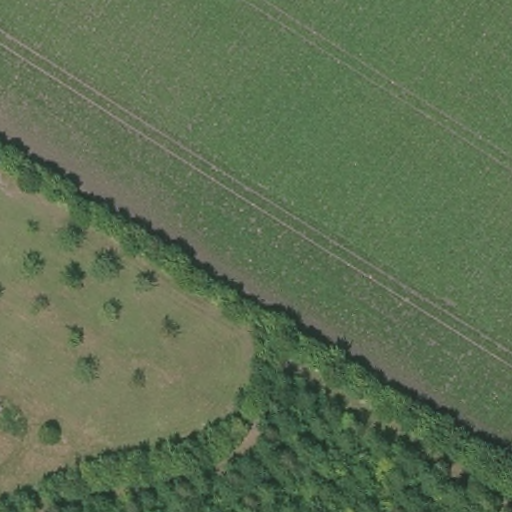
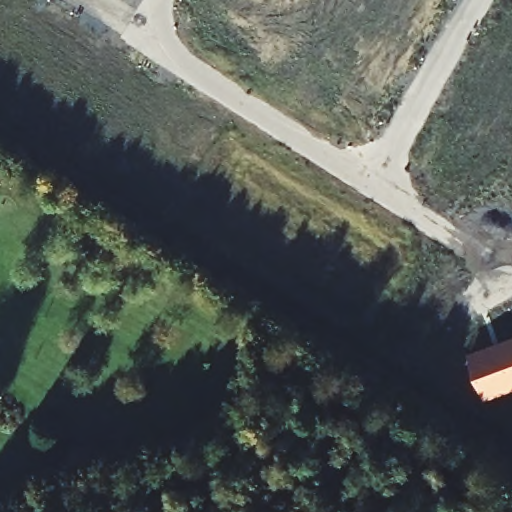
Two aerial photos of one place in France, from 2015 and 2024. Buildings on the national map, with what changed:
new [(471,353),(512,337),(512,390),(489,398),(471,353)]

